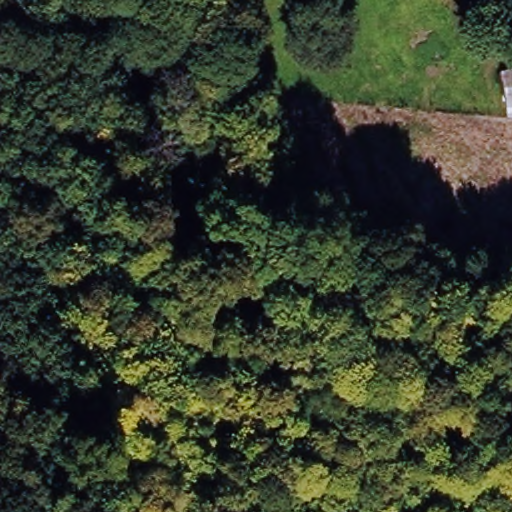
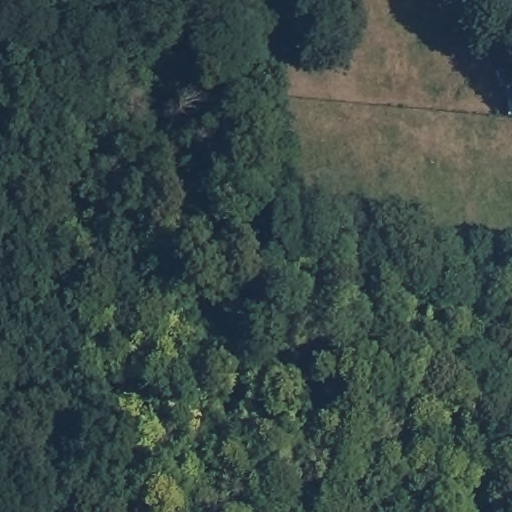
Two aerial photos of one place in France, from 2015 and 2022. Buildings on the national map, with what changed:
unchanged [(512,73),(512,114),(506,113),(506,73),(512,73)]

